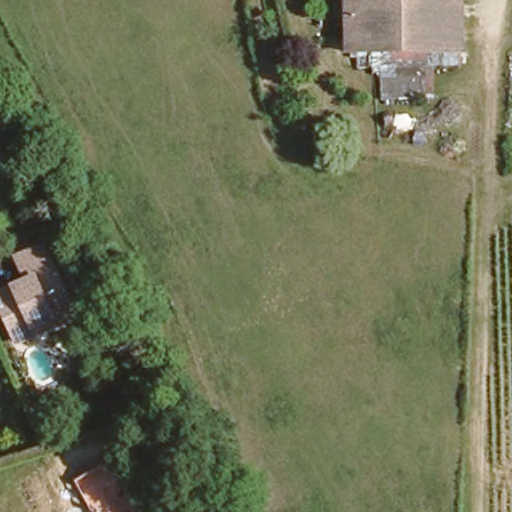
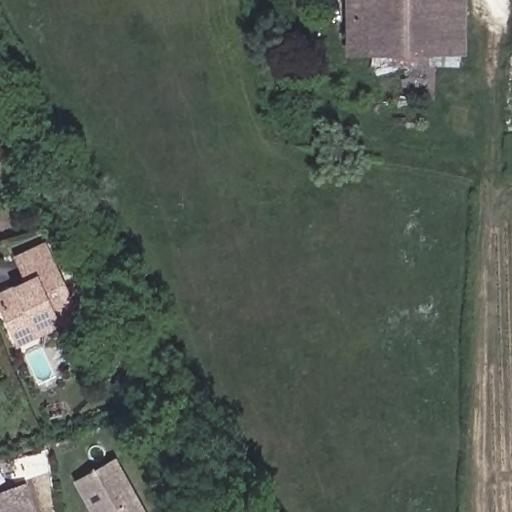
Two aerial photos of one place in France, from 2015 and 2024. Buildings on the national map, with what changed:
unchanged [(326,52),(327,0),(350,0),(349,52),(326,52)]
unchanged [(463,52),(349,52),(350,0),(464,0),(463,52)]
unchanged [(0,312),(0,286),(23,276),(13,253),(40,242),(71,314),(50,322),(10,338),(7,330),(0,312)]
unchanged [(145,512),(98,512),(97,510),(94,512),(91,512),(74,481),(115,458),(145,512)]
new [(25,483),(35,512),(0,512),(0,491),(25,483)]

